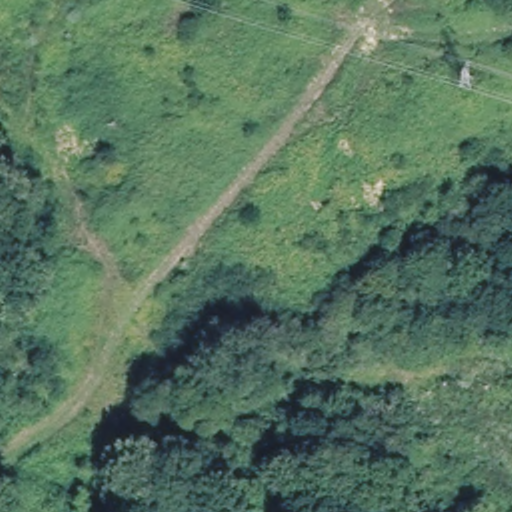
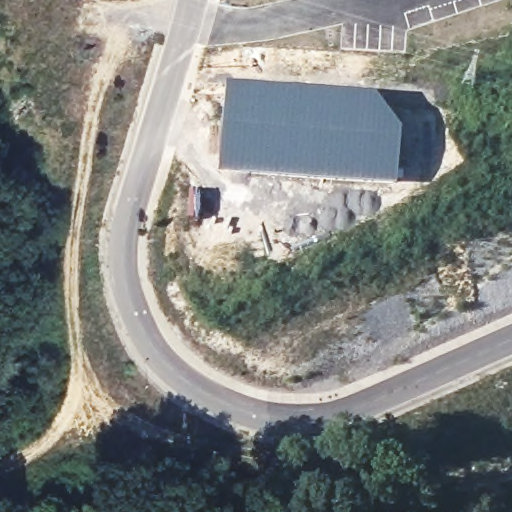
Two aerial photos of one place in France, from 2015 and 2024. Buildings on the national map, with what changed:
new [(222,90),(263,92),(312,99),(372,100),(398,135),(395,189),(305,182),(305,187),(278,185),(260,180),(215,175),(222,90)]
demolished [(25,325),(0,373),(0,298),(9,282),(34,292),(19,320),(25,325)]

